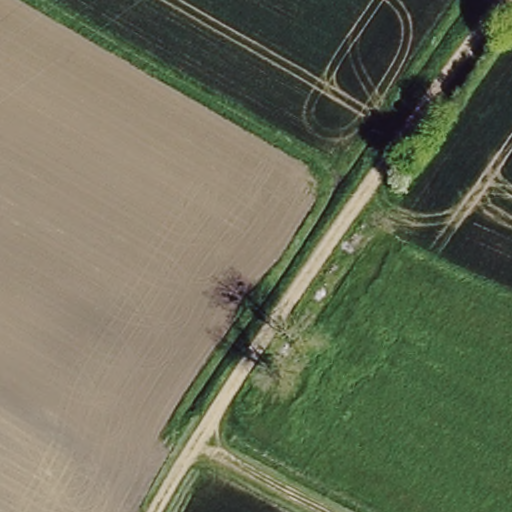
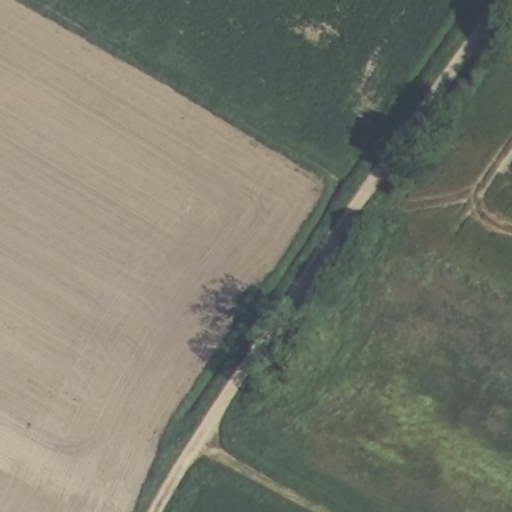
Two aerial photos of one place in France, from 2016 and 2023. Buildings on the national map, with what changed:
[]

